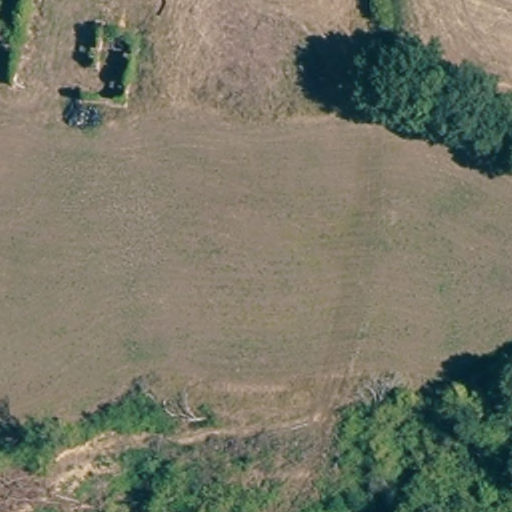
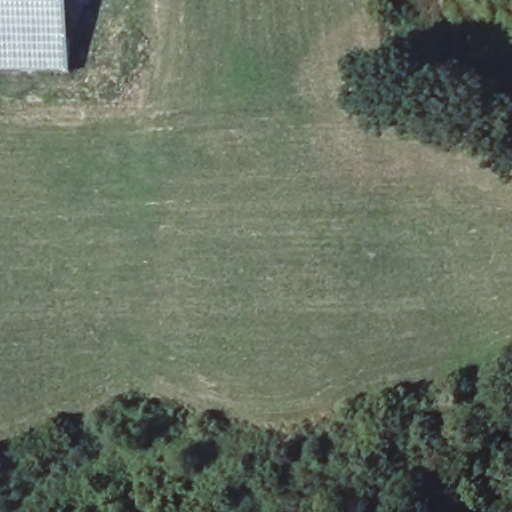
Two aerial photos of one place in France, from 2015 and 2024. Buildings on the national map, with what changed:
new [(0,72),(0,0),(72,0),(72,74),(0,72)]

